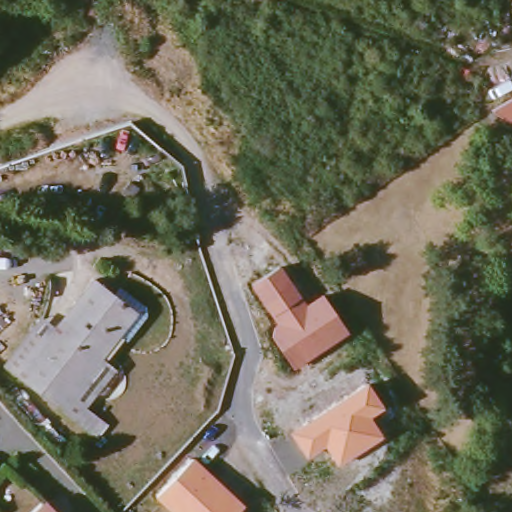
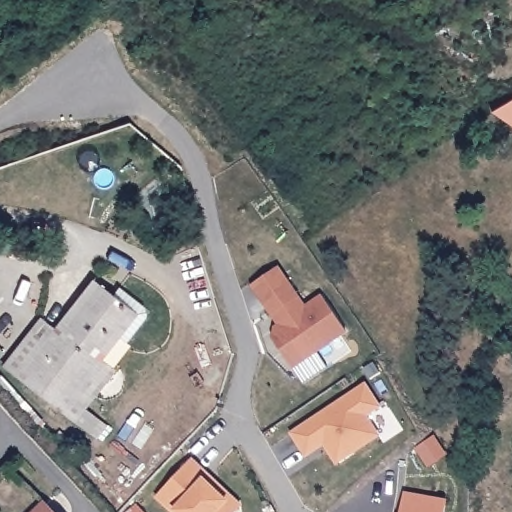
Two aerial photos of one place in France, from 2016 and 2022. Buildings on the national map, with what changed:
unchanged [(512,97),(512,140),(492,109),(512,97)]
unchanged [(272,338),(273,327),(276,325),(251,286),(281,267),(306,304),(323,293),(349,332),(293,369),(272,338)]
unchanged [(82,407),(72,420),(59,408),(28,381),(18,372),(4,361),(28,332),(39,317),(53,328),(91,278),(111,295),(118,287),(143,307),(144,317),(124,342),(117,337),(113,342),(109,338),(100,350),(103,353),(87,374),(101,386),(82,407)]
unchanged [(325,446),(308,458),(291,433),(368,382),(384,407),(369,417),(382,436),(339,466),(325,446)]
unchanged [(156,497),(193,457),(244,504),(236,512),(172,512),(156,497)]
new [(445,512),(402,512),(404,492),(447,500),(445,512)]
unchanged [(40,507),(45,512),(36,512),(40,507)]

